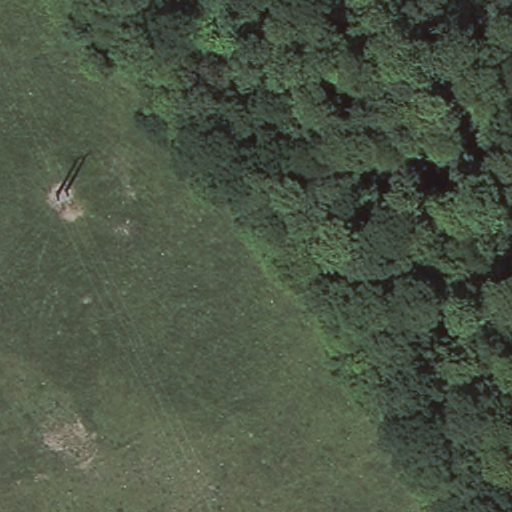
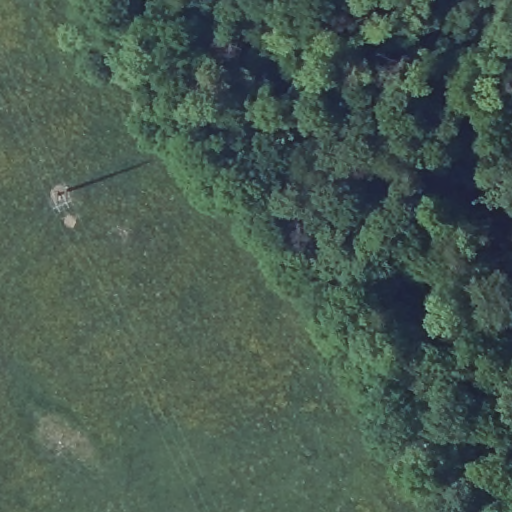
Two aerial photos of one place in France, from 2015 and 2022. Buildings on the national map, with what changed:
[]

